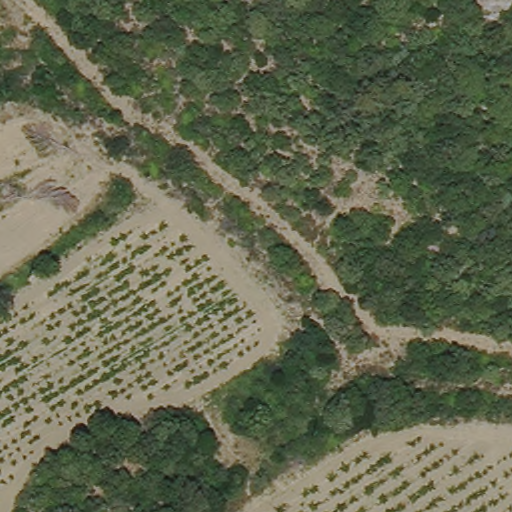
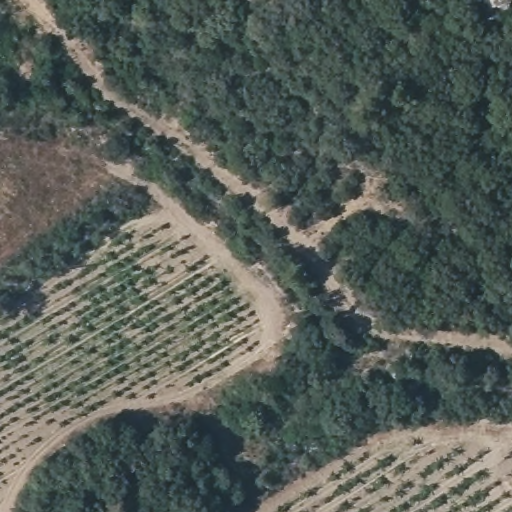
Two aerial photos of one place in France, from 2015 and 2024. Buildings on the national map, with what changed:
[]

